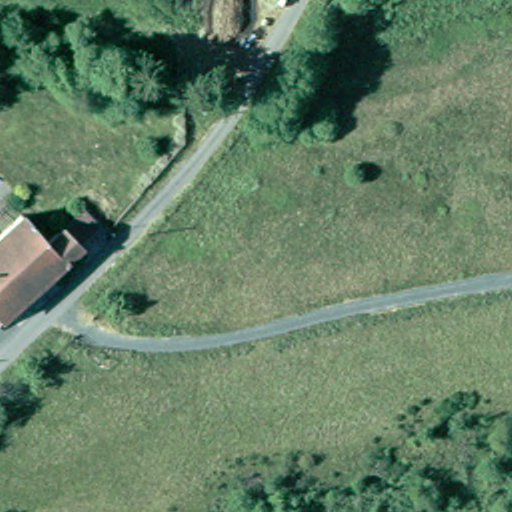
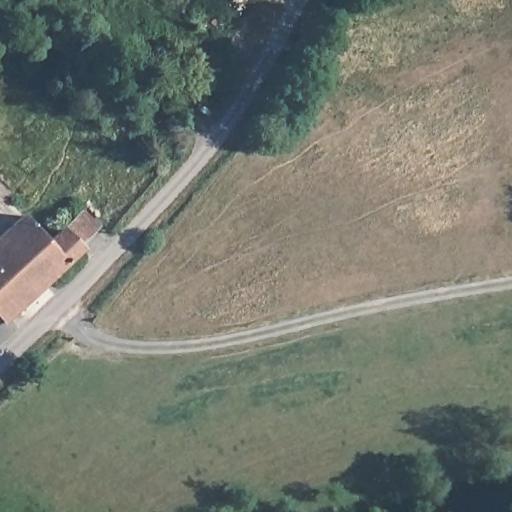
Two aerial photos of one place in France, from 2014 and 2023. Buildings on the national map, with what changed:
unchanged [(21,217),(46,242),(61,231),(82,214),(101,232),(80,250),(1,319),(0,318),(0,235),(21,217)]

